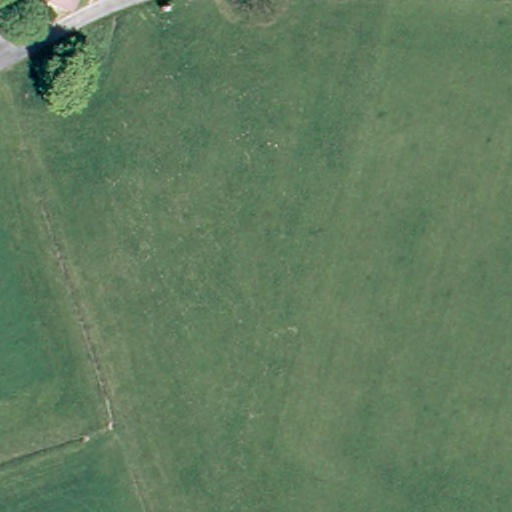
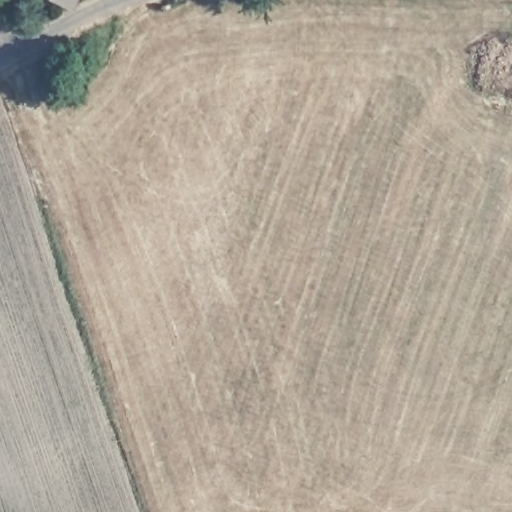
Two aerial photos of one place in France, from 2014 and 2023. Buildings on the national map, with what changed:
unchanged [(71,13),(45,0),(77,0),(71,13)]

